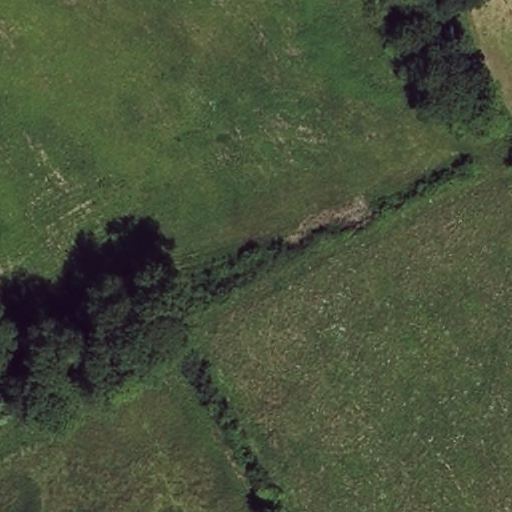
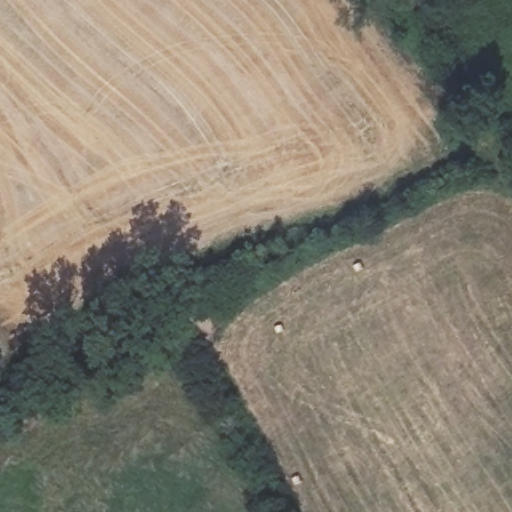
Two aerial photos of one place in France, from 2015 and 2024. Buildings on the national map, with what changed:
[]

